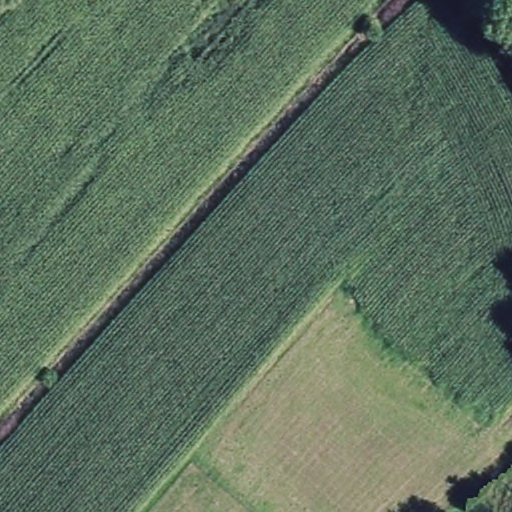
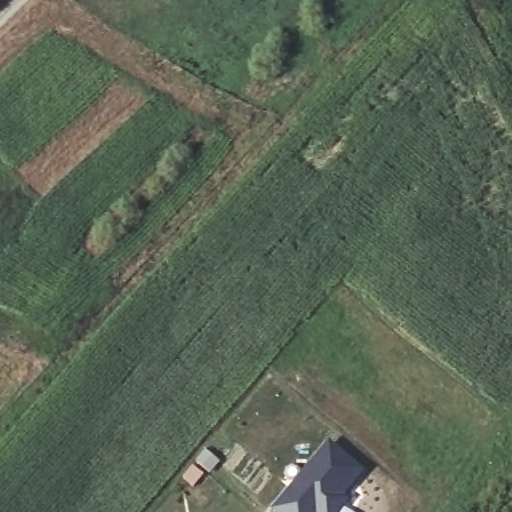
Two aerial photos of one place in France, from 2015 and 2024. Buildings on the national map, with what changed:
new [(365,470),(345,497),(347,498),(337,512),(275,512),(270,507),(327,442),(365,470)]

